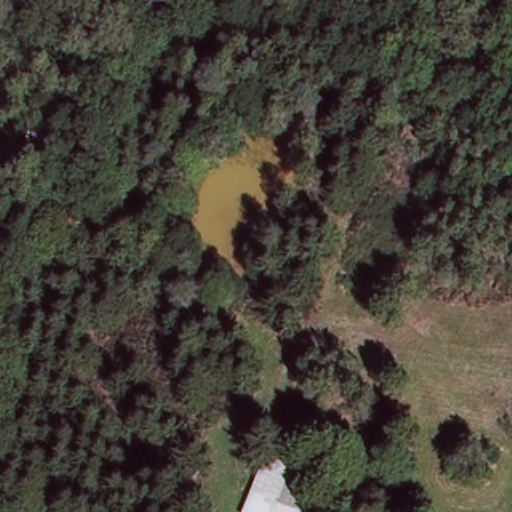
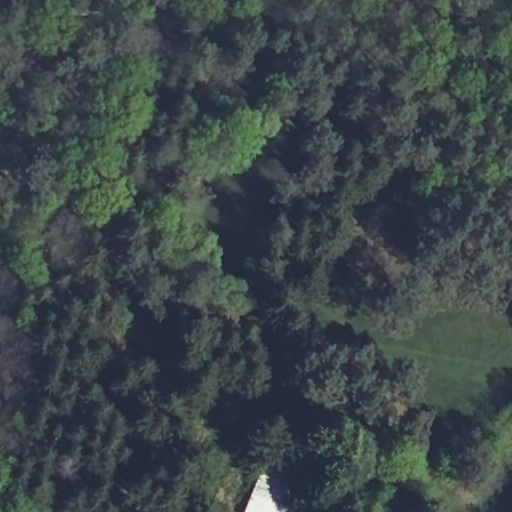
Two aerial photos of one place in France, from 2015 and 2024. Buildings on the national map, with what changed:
unchanged [(277,506),(290,512),(245,512),(268,447),(294,455),(277,506)]

